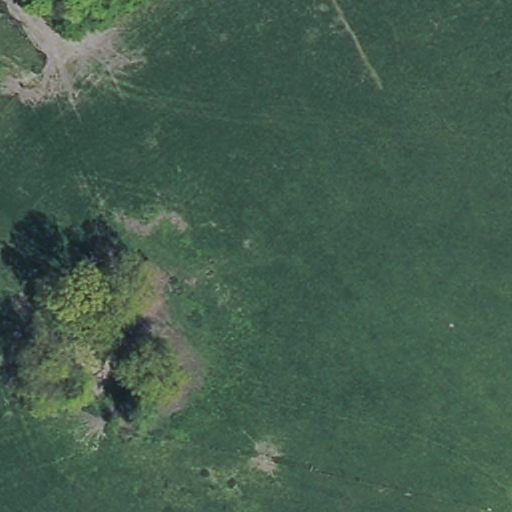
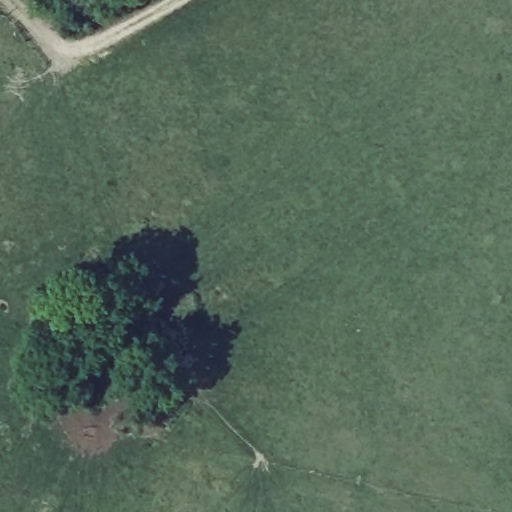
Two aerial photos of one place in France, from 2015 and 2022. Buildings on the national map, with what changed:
[]

